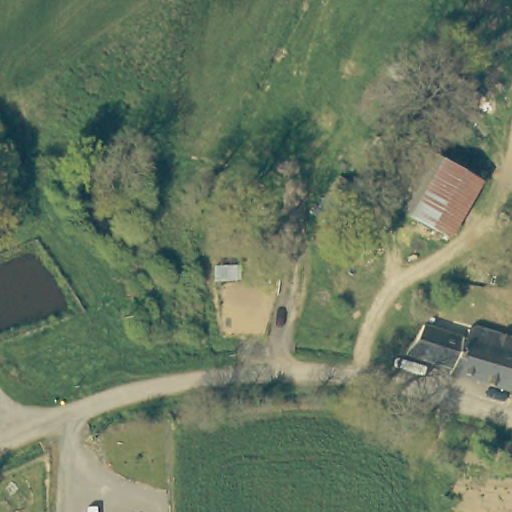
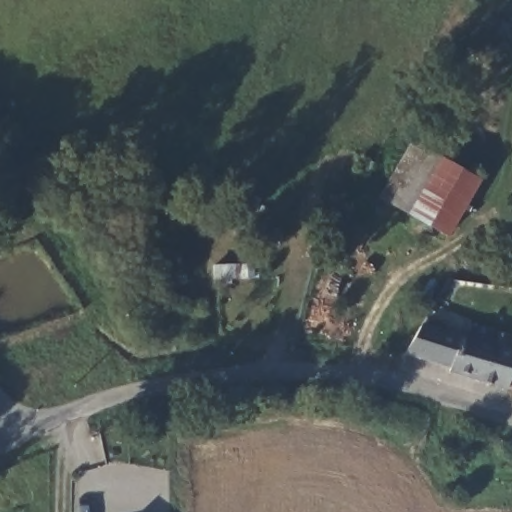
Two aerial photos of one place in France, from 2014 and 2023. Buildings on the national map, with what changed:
unchanged [(423,146),(493,185),(460,245),(389,205),(423,146)]
unchanged [(447,367),(403,352),(422,320),(460,333),(447,367)]
unchanged [(460,333),(463,334),(466,325),(472,322),(512,336),(512,367),(505,388),(446,371),(447,367),(460,333)]

